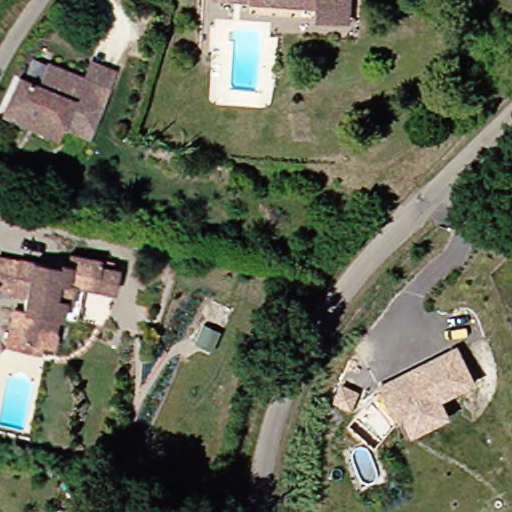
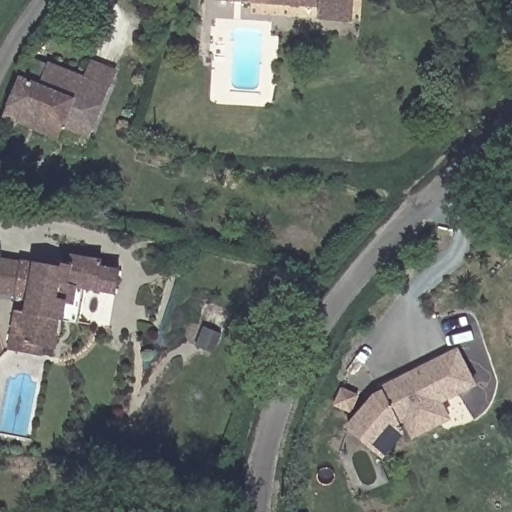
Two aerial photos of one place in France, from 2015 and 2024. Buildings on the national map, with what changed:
unchanged [(348,4),(334,4),(225,3),(226,0),(348,0),(348,4)]
unchanged [(63,127),(61,136),(2,116),(7,105),(16,80),(39,86),(46,63),(111,81),(100,123),(98,134),(63,127)]
unchanged [(18,348),(19,336),(6,334),(10,311),(23,311),(24,295),(10,292),(0,291),(0,256),(15,258),(44,261),(44,253),(69,256),(70,250),(94,254),(93,261),(114,264),(114,270),(125,272),(123,294),(86,290),(83,320),(61,318),(60,323),(58,339),(56,352),(41,351),(41,358),(18,355),(18,348)]
unchanged [(404,439),(397,423),(380,388),(460,351),(477,387),(443,403),(450,419),(404,439)]
new [(397,423),(399,426),(375,454),(346,428),(374,394),(382,390),(397,423)]

